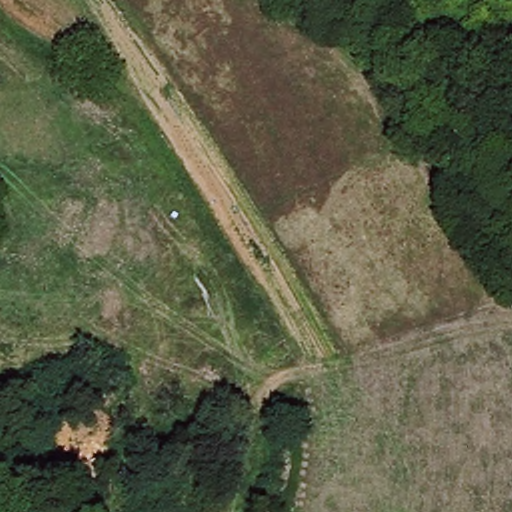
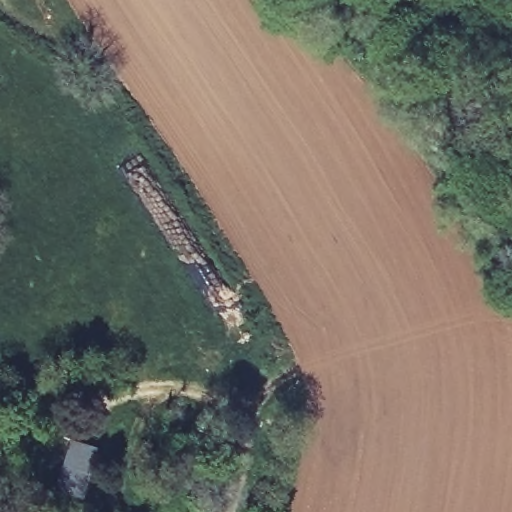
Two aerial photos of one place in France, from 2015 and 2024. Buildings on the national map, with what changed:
new [(72,440),(99,448),(84,498),(57,490),(72,440)]

